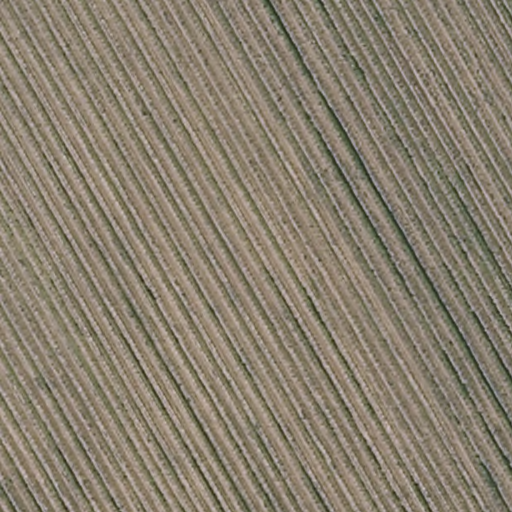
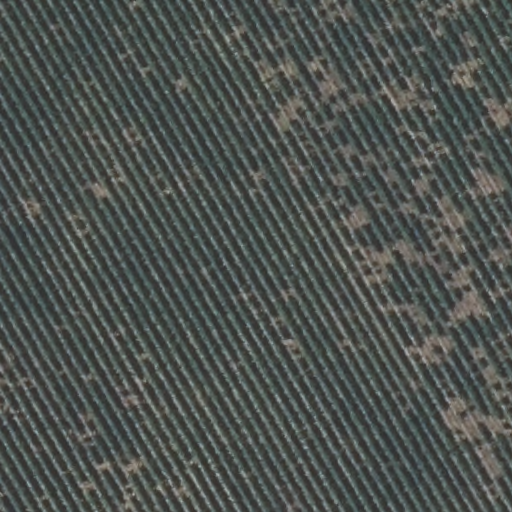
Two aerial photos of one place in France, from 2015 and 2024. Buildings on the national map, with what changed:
[]

